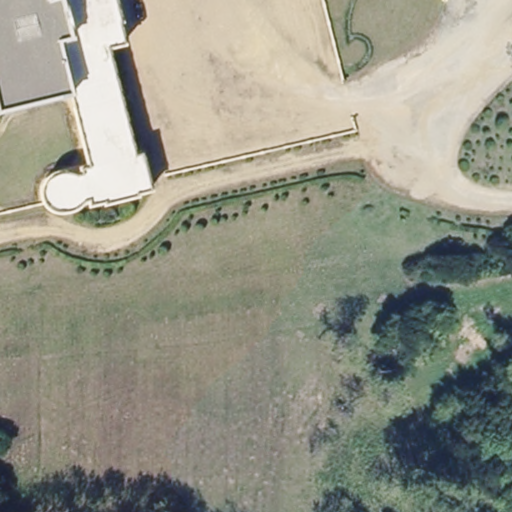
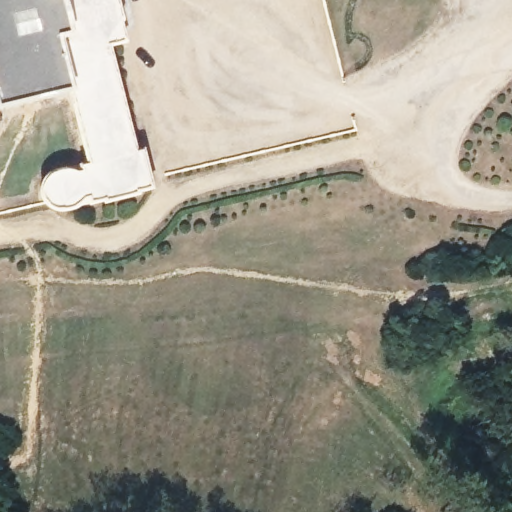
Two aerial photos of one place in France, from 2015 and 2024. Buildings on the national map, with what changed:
unchanged [(40,194),(40,189),(41,185),(44,180),(47,177),(51,174),(86,165),(67,94),(0,110),(0,0),(112,0),(117,21),(124,43),(107,48),(134,153),(142,151),(150,183),(151,191),(136,194),(136,198),(101,205),(100,202),(60,211),(55,210),(51,209),(47,206),(45,203),(42,199),(40,194)]
unchanged [(432,319),(435,326),(427,328),(425,322),(432,319)]
unchanged [(399,354),(391,334),(417,325),(425,346),(399,354)]

